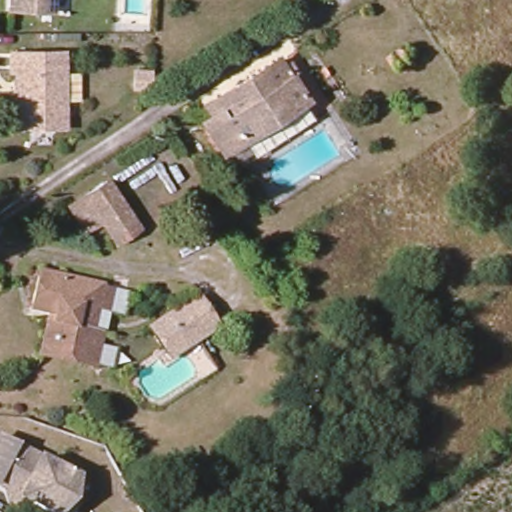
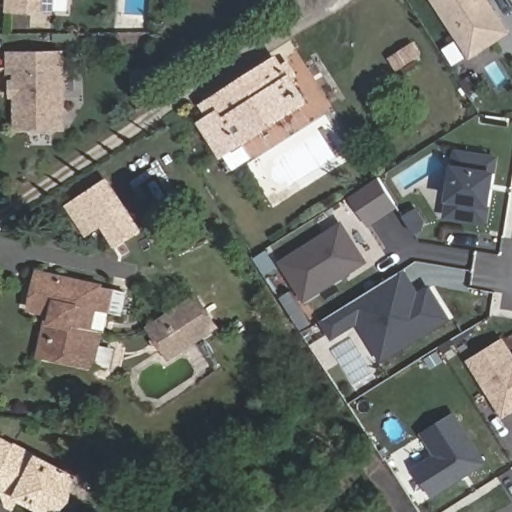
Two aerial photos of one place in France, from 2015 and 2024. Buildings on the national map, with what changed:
unchanged [(46,12),(32,11),(3,10),(4,0),(47,0),(47,2),(46,12)]
new [(471,55),(435,0),(487,0),(507,32),(471,55)]
unchanged [(419,54),(396,68),(395,69),(389,58),(393,56),(412,44),(419,54)]
unchanged [(60,130),(14,128),(15,90),(11,90),(12,81),(16,82),(16,71),(10,71),(10,54),(63,56),(60,130)]
unchanged [(212,99),(276,58),(305,101),(220,155),(200,123),(210,117),(202,106),(212,99)]
new [(485,222),(446,216),(457,151),(496,157),(485,222)]
new [(398,205),(371,222),(353,195),(380,177),(398,205)]
unchanged [(83,232),(67,207),(106,182),(138,229),(114,244),(100,222),(83,232)]
new [(424,229),(416,233),(405,216),(418,208),(425,220),(424,229)]
new [(305,298),(282,262),(341,225),(364,261),(305,298)]
new [(278,268),(266,276),(255,258),(267,250),(278,268)]
new [(372,344),(360,324),(335,340),(323,320),(403,270),(412,285),(418,295),(408,301),(429,288),(447,318),(404,345),(382,359),(372,344)]
unchanged [(48,313),(30,309),(38,272),(100,286),(90,328),(100,332),(93,366),(44,356),(39,355),(48,313)]
unchanged [(195,297),(215,327),(169,357),(149,327),(195,297)]
new [(471,361),(503,341),(512,356),(512,409),(504,414),(471,361)]
new [(433,495),(416,468),(437,455),(424,433),(454,415),(484,462),(433,495)]
unchanged [(35,453),(82,479),(64,512),(47,512),(0,489),(0,435),(35,453)]

